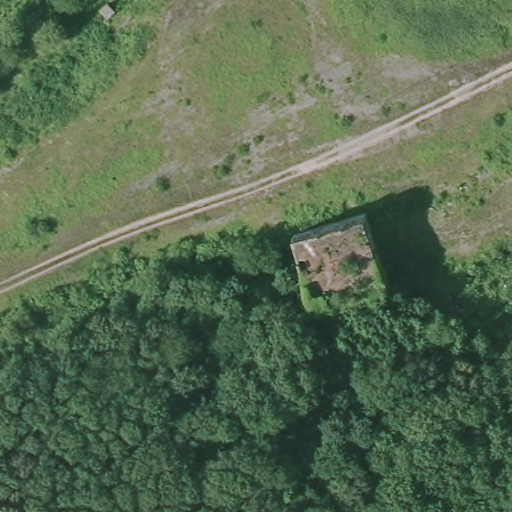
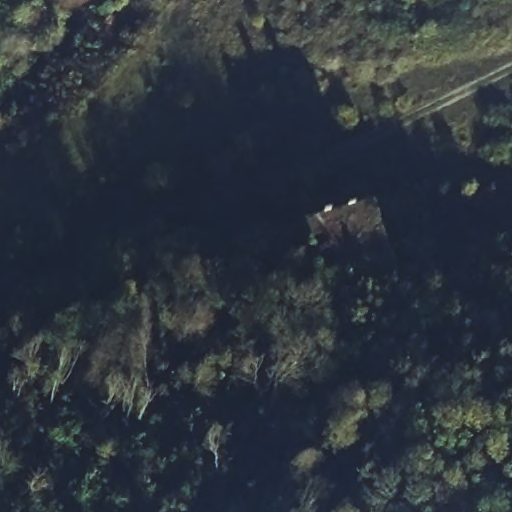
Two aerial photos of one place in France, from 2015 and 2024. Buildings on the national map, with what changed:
unchanged [(367,216),(387,279),(313,299),(298,236),(367,216)]

